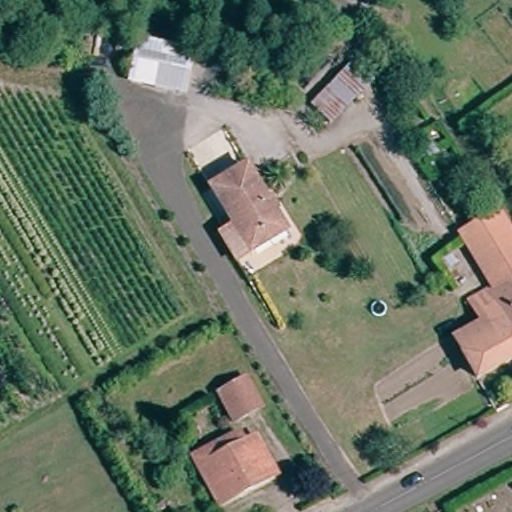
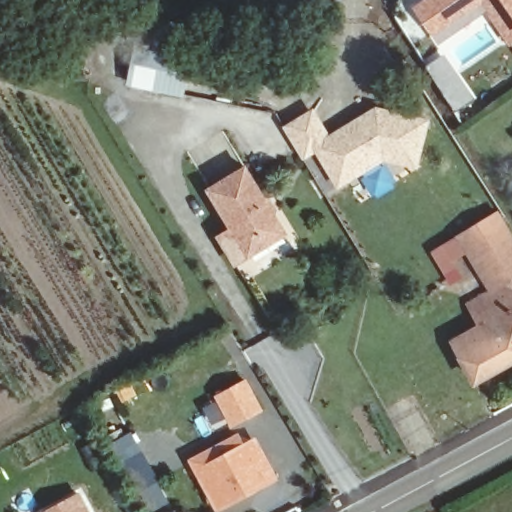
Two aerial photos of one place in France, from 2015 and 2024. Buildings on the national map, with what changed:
new [(512,0),(512,45),(510,46),(480,6),(441,33),(445,37),(436,43),(412,6),(420,0),(512,0)]
unchanged [(137,38),(194,50),(185,96),(128,86),(137,38)]
new [(444,52),(475,98),(455,112),(424,66),(444,52)]
new [(386,161),(339,190),(316,153),(305,160),(285,126),(315,108),(330,135),(376,106),(430,120),(418,170),(386,161)]
unchanged [(263,247),(247,256),(208,191),(225,181),(244,169),(263,201),(271,215),(283,235),(263,247)]
unchanged [(512,356),(478,376),(454,339),(481,322),(469,301),(492,287),(460,234),(497,211),(512,235),(512,356)]
unchanged [(255,421),(230,436),(210,404),(236,389),(255,421)]
new [(132,430),(171,501),(151,512),(150,512),(109,444),(132,430)]
unchanged [(270,486),(224,512),(214,512),(191,472),(237,447),(242,456),(250,452),(270,486)]
new [(81,490),(93,512),(39,512),(81,490)]

